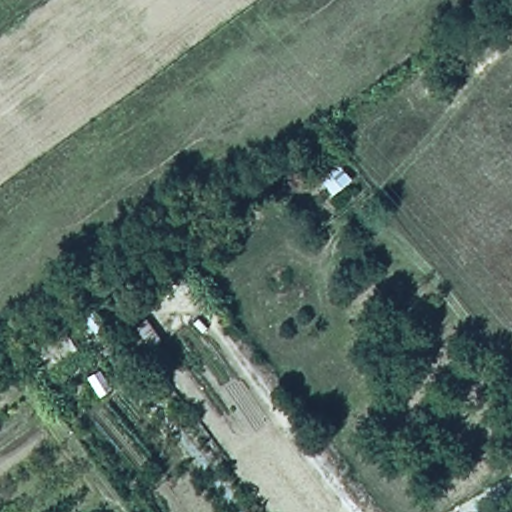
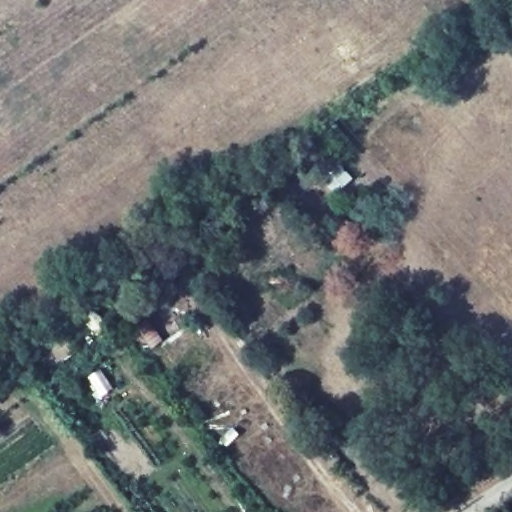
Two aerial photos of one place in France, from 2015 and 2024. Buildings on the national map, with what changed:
unchanged [(305,164),(325,149),(353,180),(331,195),(305,164)]
unchanged [(35,349),(67,328),(83,352),(50,370),(35,349)]

